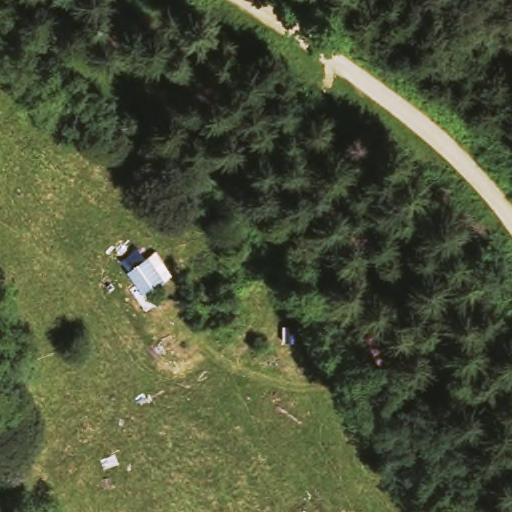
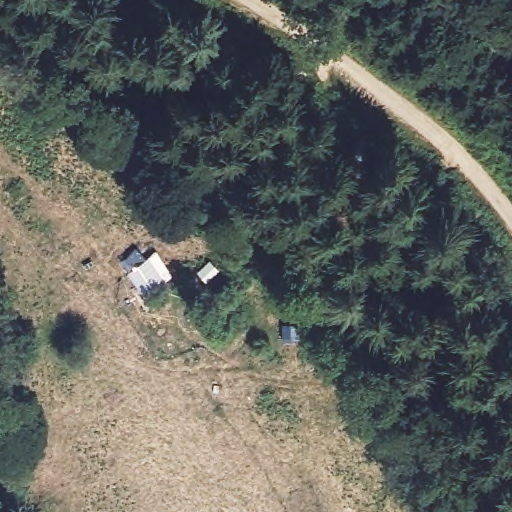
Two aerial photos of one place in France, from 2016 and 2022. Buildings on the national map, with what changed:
unchanged [(147,245),(169,276),(141,295),(124,267),(147,245)]

